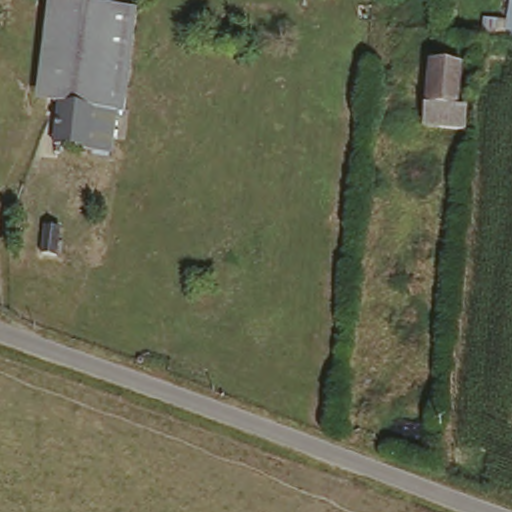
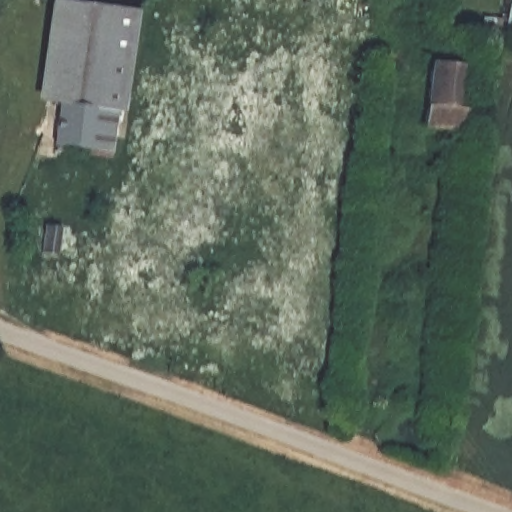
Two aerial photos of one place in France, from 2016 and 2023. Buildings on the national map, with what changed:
unchanged [(137,10),(134,70),(129,70),(125,113),(116,112),(113,153),(54,147),(57,104),(40,100),(49,0),(68,0),(137,10)]
unchanged [(460,71),(454,116),(463,117),(462,137),(422,133),(424,114),(429,68),(460,71)]
unchanged [(69,229),(64,255),(43,251),(50,224),(69,229)]

